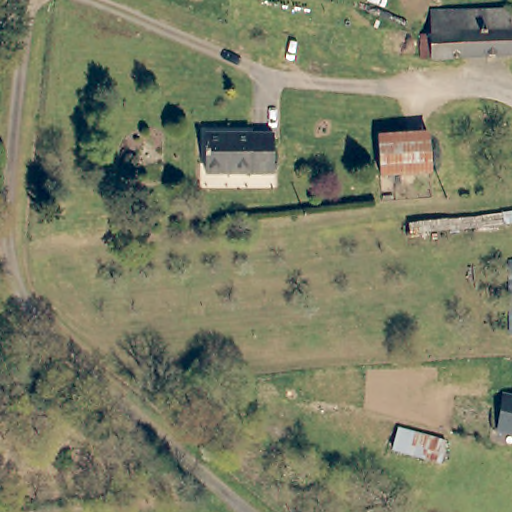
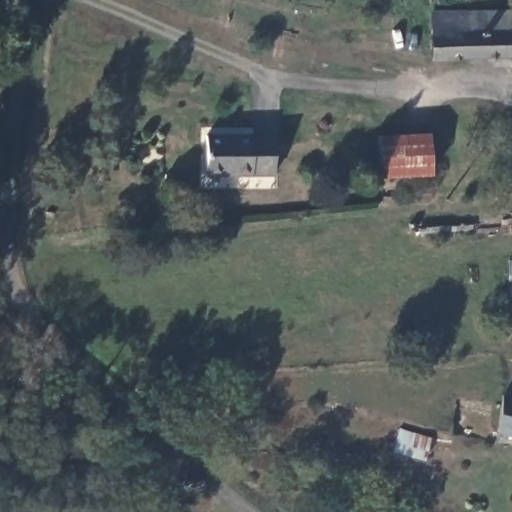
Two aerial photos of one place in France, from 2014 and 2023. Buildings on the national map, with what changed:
unchanged [(432,22),(512,20),(512,67),(433,68),(432,22)]
unchanged [(202,168),(202,133),(273,132),(274,173),(219,174),(202,174),(202,168)]
unchanged [(380,176),(380,172),(378,135),(427,133),(429,174),(380,176)]
unchanged [(505,261),(512,261),(512,335),(508,336),(505,261)]
unchanged [(512,435),(491,428),(502,393),(512,396),(512,435)]
unchanged [(389,455),(400,430),(446,443),(441,468),(389,455)]

